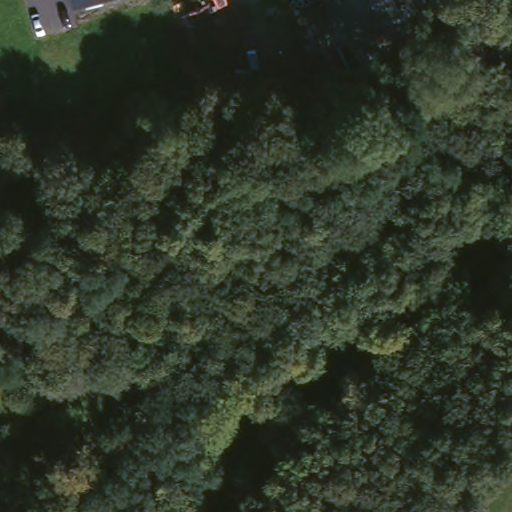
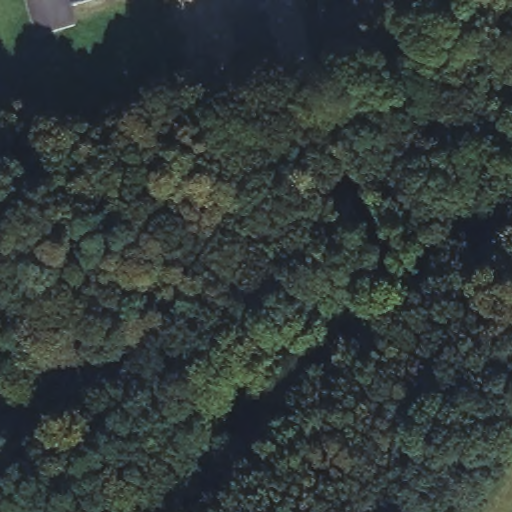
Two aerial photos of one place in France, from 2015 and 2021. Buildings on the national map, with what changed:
unchanged [(73,0),(82,0),(74,2),(73,0)]

